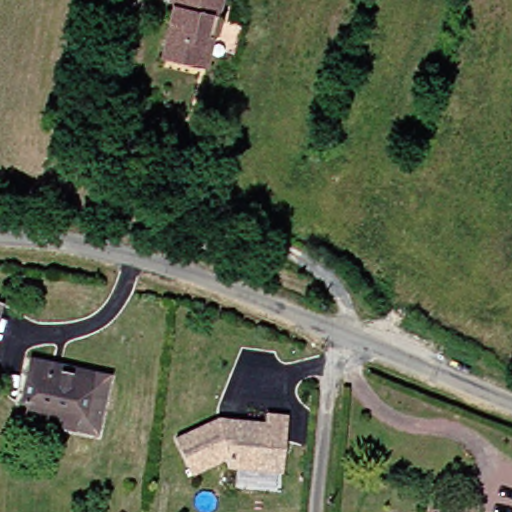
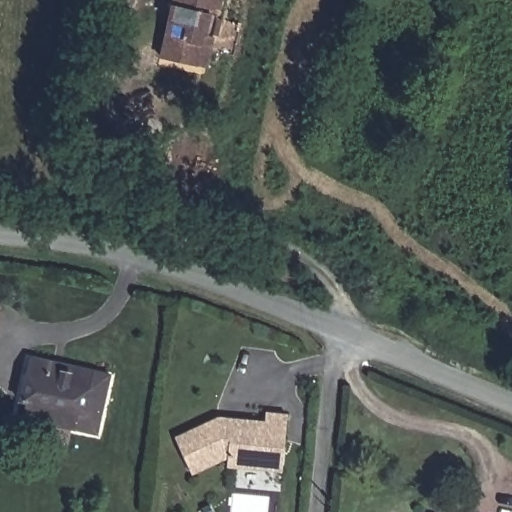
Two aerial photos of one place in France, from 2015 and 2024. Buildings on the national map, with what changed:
unchanged [(210,46),(204,69),(194,66),(160,56),(176,0),(221,0),(217,18),(247,26),(239,54),(210,46)]
unchanged [(0,331),(0,303),(6,305),(0,331)]
unchanged [(33,404),(28,403),(33,363),(113,375),(104,434),(78,429),(31,421),(33,404)]
unchanged [(267,471),(226,465),(226,457),(220,457),(192,468),(180,431),(228,416),(272,423),(273,414),(292,417),(288,447),(284,473),(267,471)]

